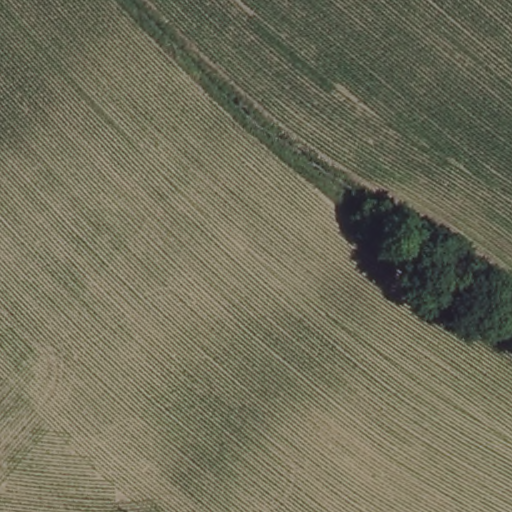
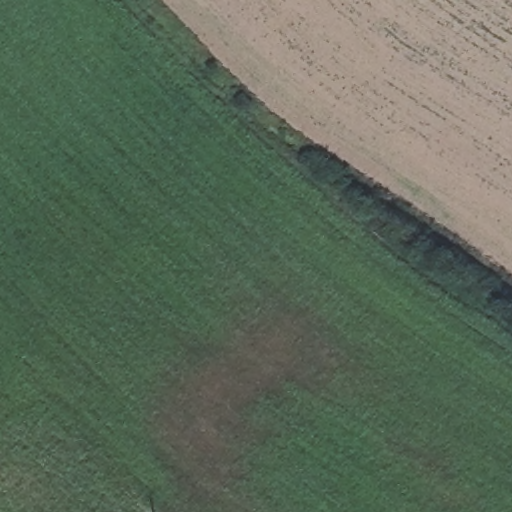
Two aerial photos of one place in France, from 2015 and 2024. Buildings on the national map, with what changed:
[]

